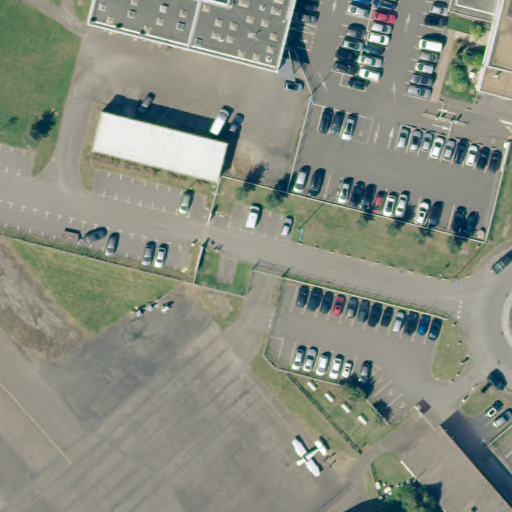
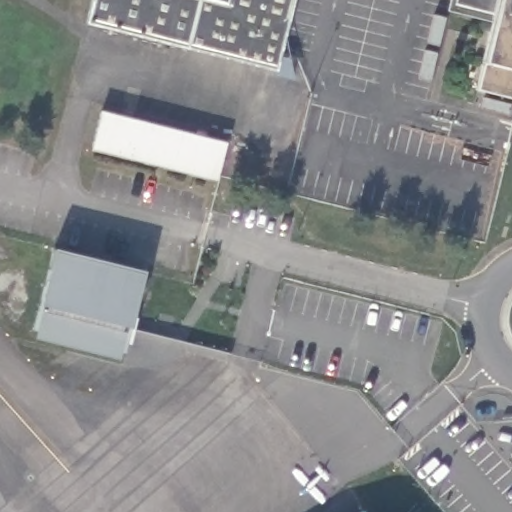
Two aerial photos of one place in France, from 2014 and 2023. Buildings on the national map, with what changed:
unchanged [(272,66),(84,20),(89,0),(289,0),(275,52),(286,55),(290,75),(271,70),(272,66)]
unchanged [(454,2),(455,0),(512,0),(512,89),(472,78),(489,11),(454,2)]
unchanged [(223,139),(214,177),(90,146),(99,108),(223,139)]
new [(146,273),(132,329),(122,362),(35,341),(42,310),(55,250),(146,273)]
demolished [(427,428),(500,512),(443,512),(395,456),(427,428)]

